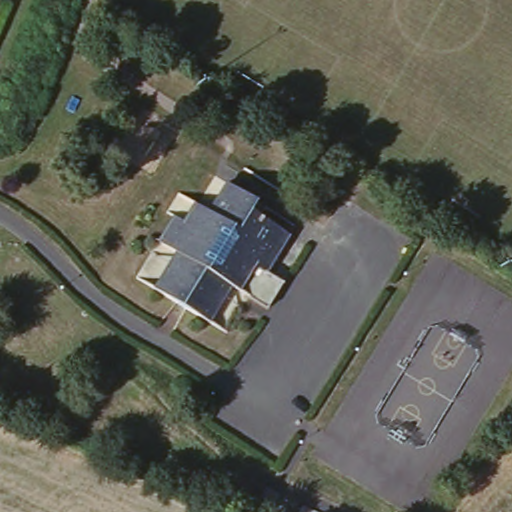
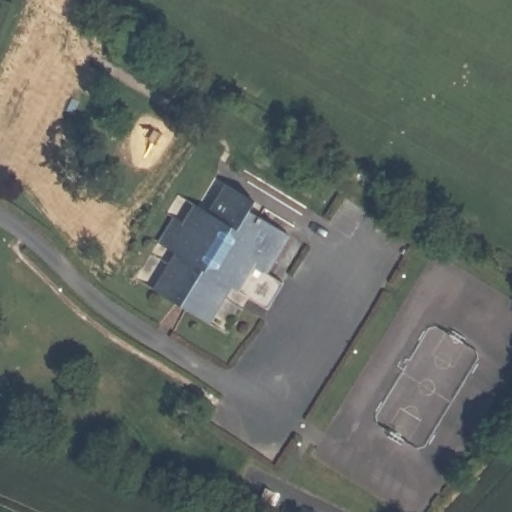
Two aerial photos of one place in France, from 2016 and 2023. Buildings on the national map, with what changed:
unchanged [(173,203),(186,209),(198,191),(229,210),(245,183),(271,199),(262,215),(274,221),(278,216),(306,234),(287,268),(302,278),(285,306),(246,286),(226,318),(154,275),(174,239),(158,228),(173,203)]

